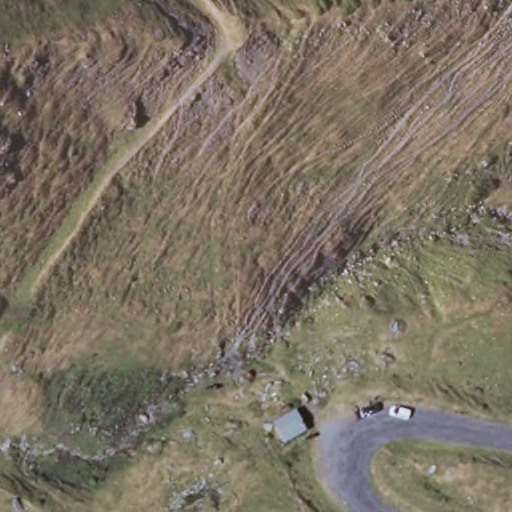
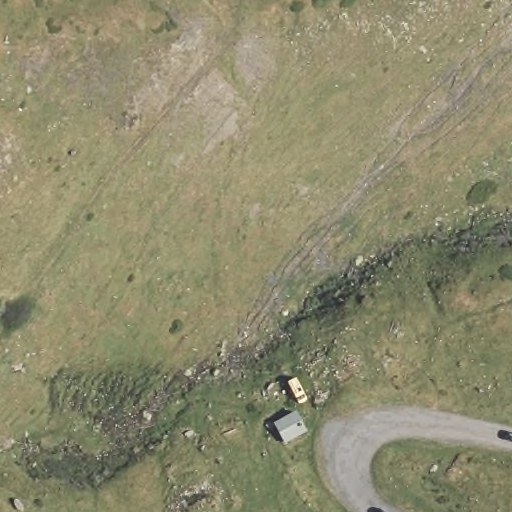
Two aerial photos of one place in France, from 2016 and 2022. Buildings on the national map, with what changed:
unchanged [(285,422),(295,417),(307,437),(284,452),(275,428),(285,422)]

